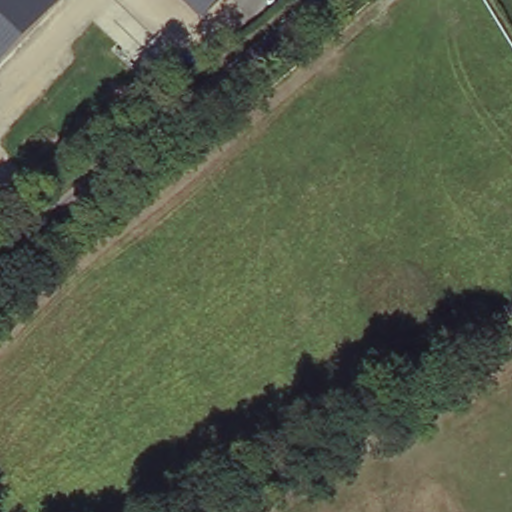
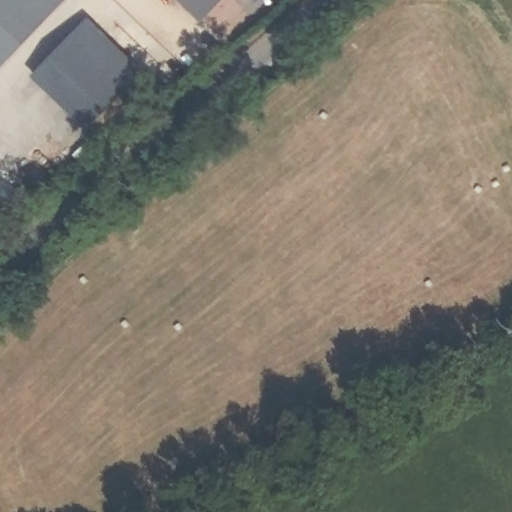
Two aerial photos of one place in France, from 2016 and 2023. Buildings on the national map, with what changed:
unchanged [(0,64),(0,0),(64,0),(0,64)]
unchanged [(201,19),(180,0),(223,0),(201,19)]
new [(92,14),(154,77),(98,132),(37,73),(92,14)]

